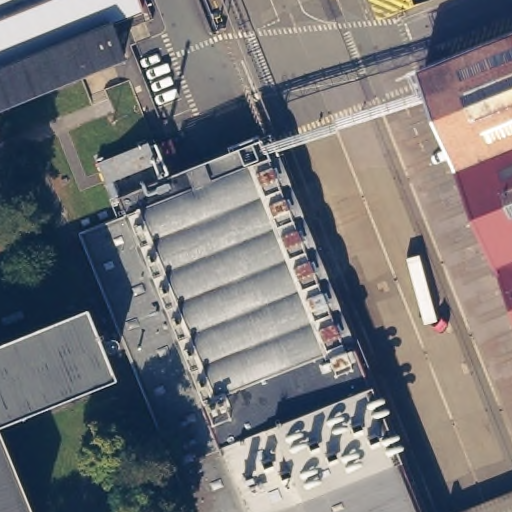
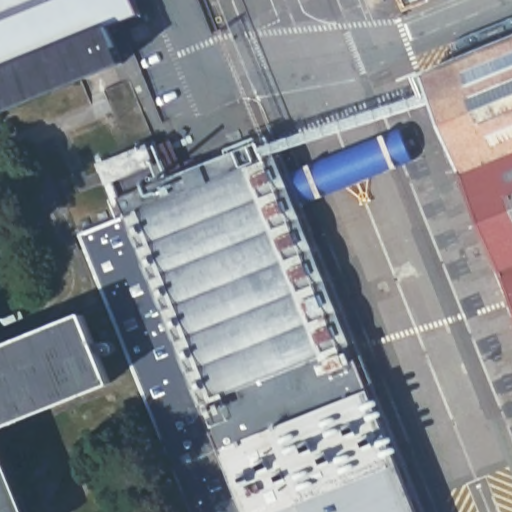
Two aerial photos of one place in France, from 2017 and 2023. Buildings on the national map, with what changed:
unchanged [(108,28),(123,64),(0,113),(0,0),(135,0),(141,15),(108,28)]
unchanged [(512,36),(512,297),(422,72),(512,36)]
unchanged [(116,189),(268,129),(421,512),(194,512),(80,225),(123,207),(116,189)]
unchanged [(156,165),(105,185),(96,164),(147,143),(156,165)]
unchanged [(83,310),(110,378),(0,423),(0,343),(83,310)]
unchanged [(28,512),(0,512),(0,442),(28,512)]

